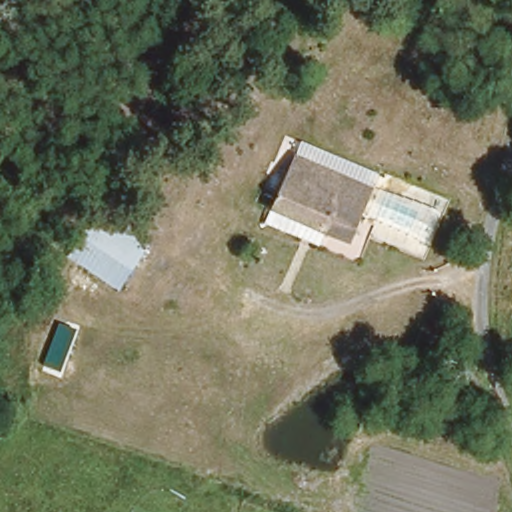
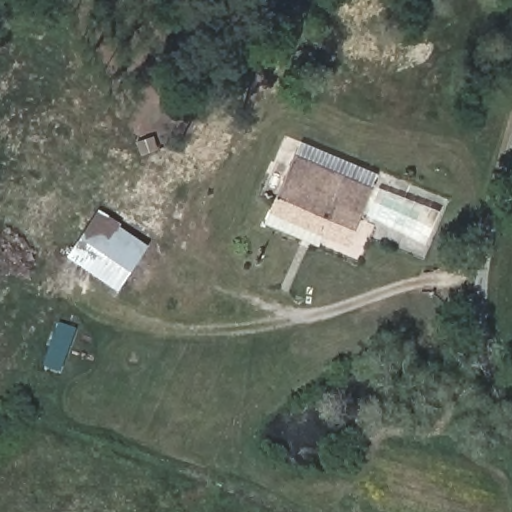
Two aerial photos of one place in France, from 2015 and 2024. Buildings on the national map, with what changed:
unchanged [(375,186),(349,246),(262,211),(293,158),(375,186)]
unchanged [(118,292),(65,258),(94,212),(148,244),(118,292)]

